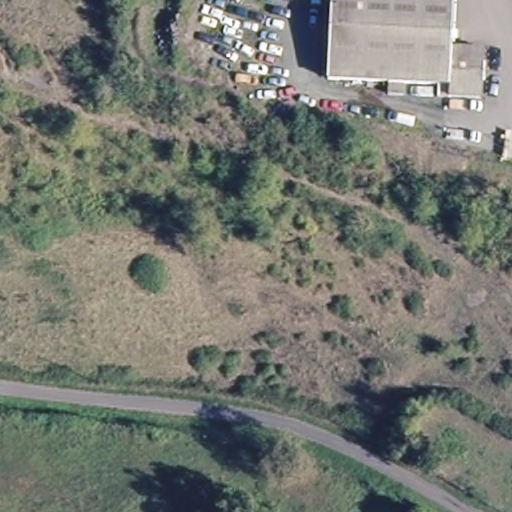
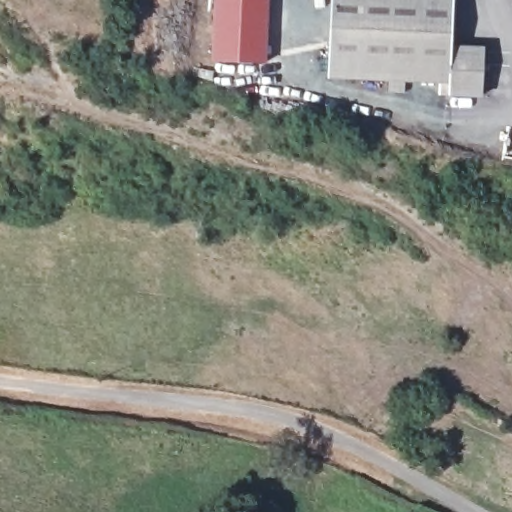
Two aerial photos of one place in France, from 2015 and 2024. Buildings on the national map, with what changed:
new [(214,0),(268,0),(265,63),(212,61),(214,0)]
unchanged [(326,75),(329,0),(452,0),(451,45),(450,83),(326,75)]
unchanged [(483,47),(483,97),(450,95),(450,83),(451,45),(483,47)]

